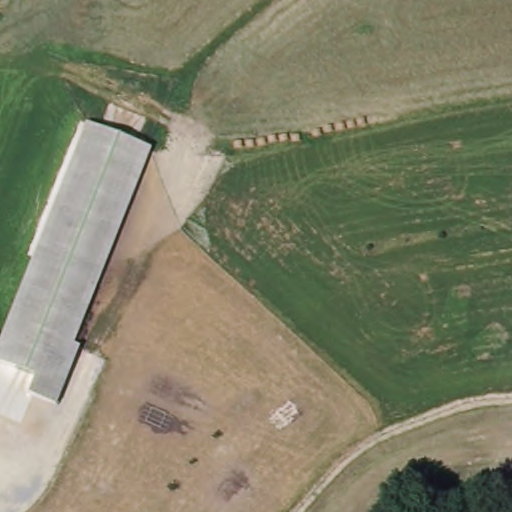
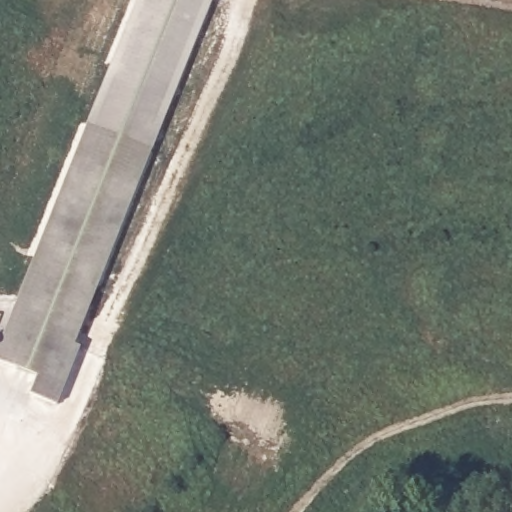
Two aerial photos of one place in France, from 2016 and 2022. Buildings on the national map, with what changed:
new [(137,0),(204,0),(146,148),(89,125),(137,0)]
unchanged [(44,402),(25,394),(33,376),(0,363),(0,346),(89,125),(146,148),(68,344),(79,348),(56,406),(44,402)]

